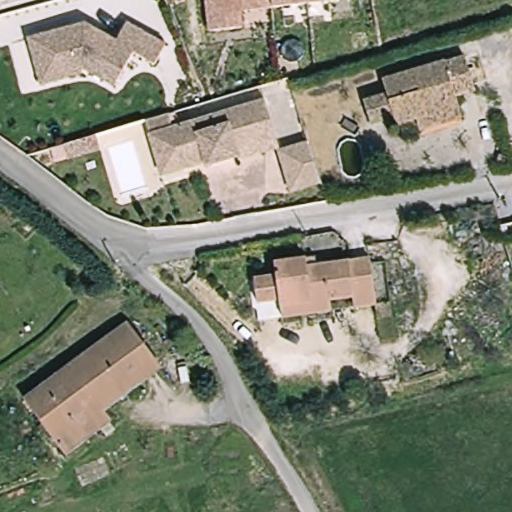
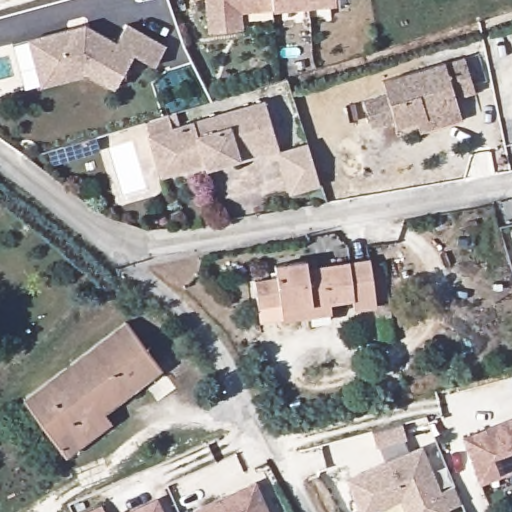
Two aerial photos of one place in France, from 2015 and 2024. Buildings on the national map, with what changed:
unchanged [(335,1),(240,11),(241,29),(208,32),(206,0),(335,0),(335,1)]
unchanged [(152,68),(134,55),(114,88),(83,70),(85,76),(42,87),(30,37),(85,21),(117,40),(129,22),(165,46),(152,68)]
unchanged [(400,136),(398,129),(373,137),(365,113),(391,105),(387,91),(450,72),(450,73),(469,68),(479,101),(459,107),(462,118),(465,128),(424,140),(422,130),(400,136)]
unchanged [(160,162),(148,121),(177,113),(181,128),(266,103),(277,142),(280,151),(241,162),(240,159),(206,169),(205,165),(182,172),(165,177),(160,162)]
unchanged [(98,136),(104,153),(75,162),(70,145),(98,136)]
unchanged [(320,185),(290,195),(279,152),(308,143),(320,185)]
unchanged [(375,306),(354,309),(352,298),(328,302),(330,313),(281,321),(278,303),(256,306),(253,284),(274,281),(272,268),(304,263),(312,262),(314,270),(368,262),(375,306)]
unchanged [(67,459),(59,451),(23,405),(124,325),(159,368),(103,415),(110,424),(67,459)]
new [(468,443),(464,431),(487,422),(512,413),(512,463),(480,475),(468,443)]
new [(395,420),(399,436),(368,443),(364,428),(395,420)]
new [(397,497),(365,512),(358,512),(343,480),(404,452),(416,446),(436,489),(450,482),(458,499),(443,506),(445,510),(441,512),(404,512),(403,510),(397,497)]
new [(269,512),(195,512),(194,511),(255,483),(269,512)]
new [(162,512),(126,512),(156,499),(162,512)]
new [(105,512),(89,512),(102,506),(105,512)]

